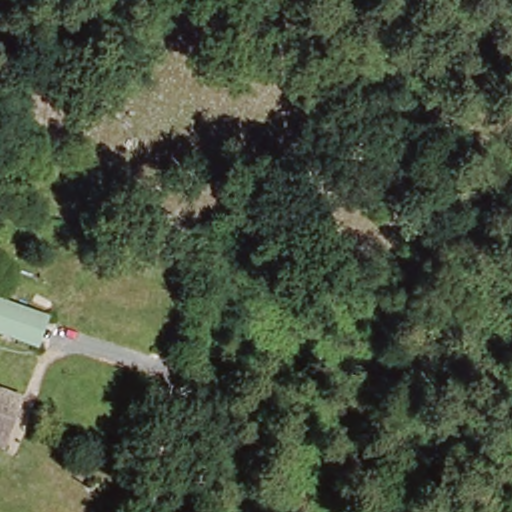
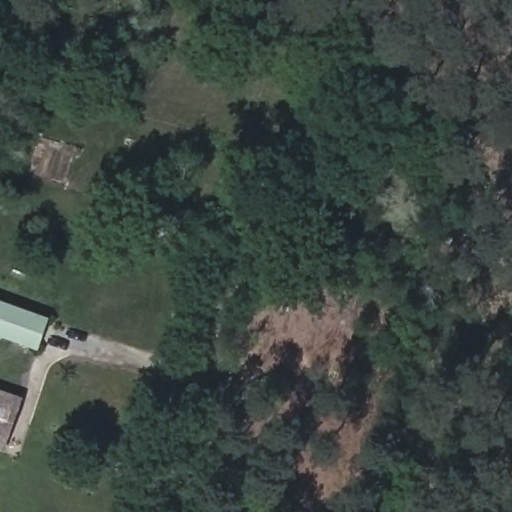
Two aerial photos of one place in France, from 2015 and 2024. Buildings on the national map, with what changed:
unchanged [(34,347),(0,334),(0,295),(48,315),(34,347)]
unchanged [(0,443),(0,388),(28,398),(14,447),(0,443)]
unchanged [(105,440),(126,449),(113,478),(94,470),(105,440)]

